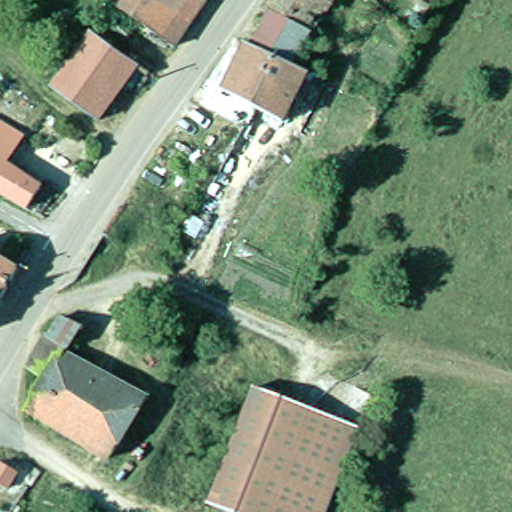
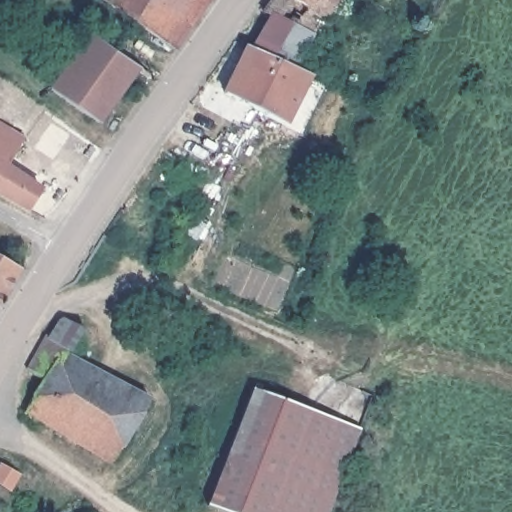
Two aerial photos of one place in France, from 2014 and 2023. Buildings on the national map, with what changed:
unchanged [(199,17),(176,51),(102,0),(210,0),(199,17)]
unchanged [(279,19),(271,15),(282,0),(323,0),(336,8),(316,40),(279,19)]
unchanged [(323,0),(342,0),(336,8),(323,0)]
unchanged [(261,52),(279,19),(316,40),(299,71),(261,52)]
unchanged [(54,89),(89,37),(136,68),(99,120),(54,89)]
unchanged [(286,122),(231,93),(254,50),(261,52),(299,71),(324,82),(318,95),(307,90),(291,125),(286,122)]
unchanged [(25,137),(8,169),(40,190),(21,210),(0,198),(0,125),(25,137)]
unchanged [(23,271),(0,313),(0,256),(23,271)]
unchanged [(38,376),(52,345),(55,346),(69,324),(87,337),(76,354),(72,361),(153,407),(117,468),(33,418),(55,385),(38,376)]
unchanged [(349,469),(244,428),(261,388),(366,428),(358,452),(351,470),(349,469)]
unchanged [(237,512),(216,503),(244,428),(349,469),(334,512),(237,512)]
unchanged [(8,493),(0,489),(0,465),(19,475),(8,493)]

